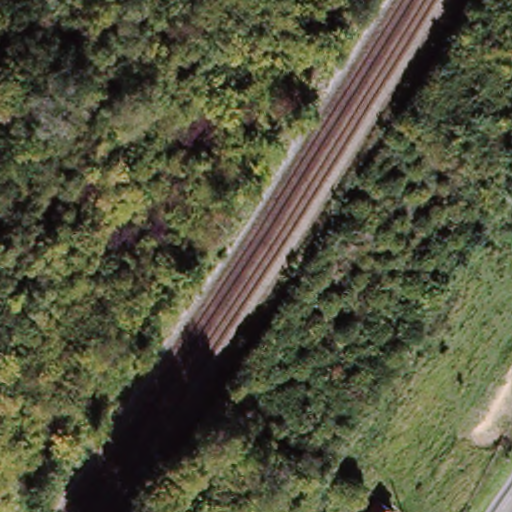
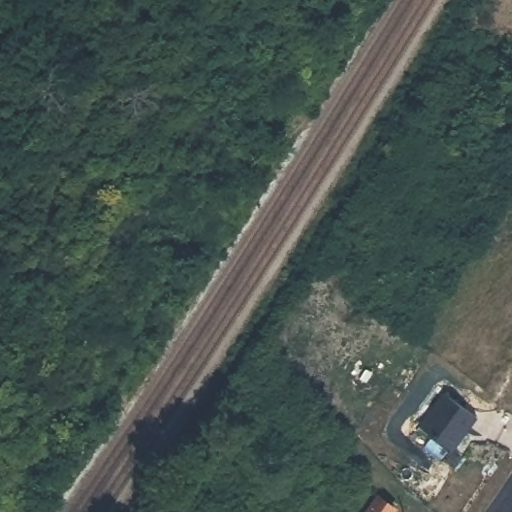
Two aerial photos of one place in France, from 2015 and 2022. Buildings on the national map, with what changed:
new [(440,395),(472,418),(449,452),(416,429),(440,395)]

